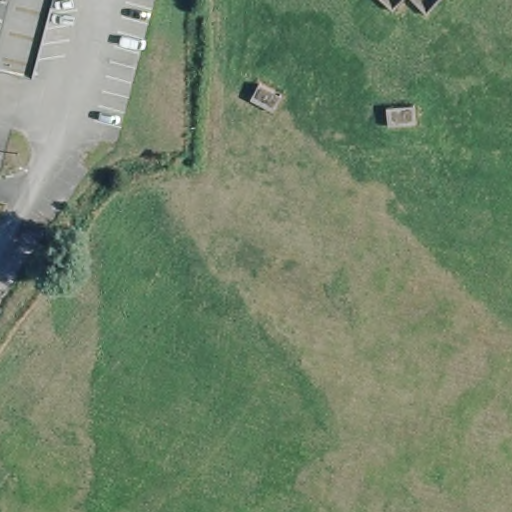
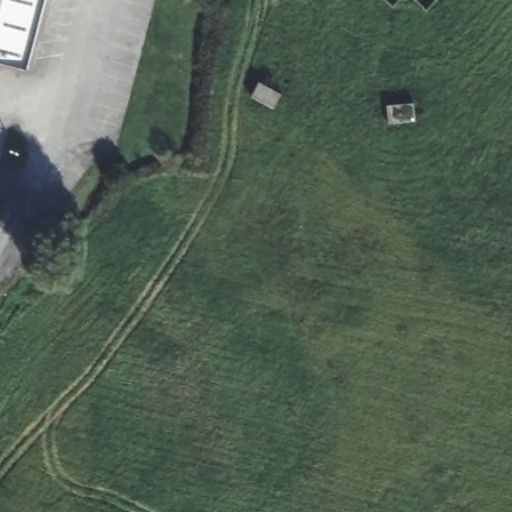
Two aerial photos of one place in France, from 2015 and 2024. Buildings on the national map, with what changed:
unchanged [(27,70),(0,64),(0,0),(46,0),(45,2),(27,70)]
unchanged [(385,0),(399,0),(392,6),(385,0)]
unchanged [(410,0),(438,0),(427,13),(410,0)]

